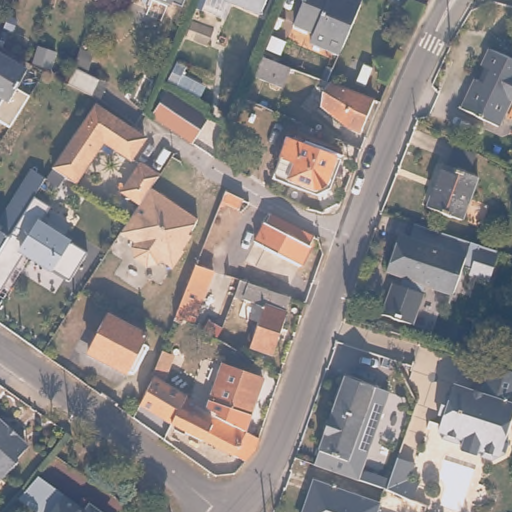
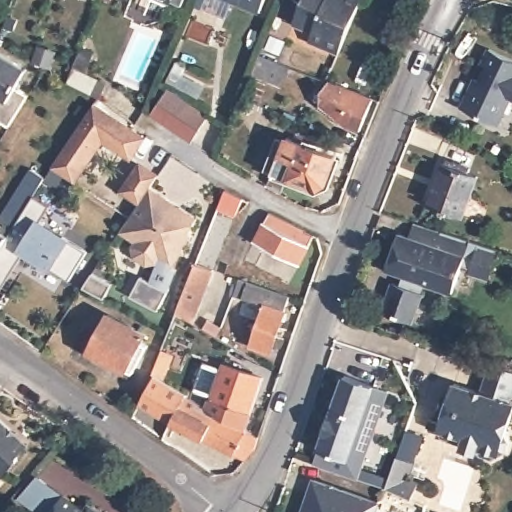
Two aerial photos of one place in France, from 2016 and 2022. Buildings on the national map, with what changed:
unchanged [(185,5),(172,0),(188,0),(185,5)]
unchanged [(260,7),(244,0),(263,0),(260,7)]
unchanged [(340,53),(310,40),(314,30),(294,21),(304,0),(364,0),(340,53)]
unchanged [(51,39),(49,46),(40,42),(42,35),(51,39)]
unchanged [(512,55),(512,93),(510,92),(496,120),(461,102),(475,74),(480,75),(486,62),(481,60),(489,44),(512,55)]
unchanged [(27,67),(20,79),(22,80),(10,99),(8,97),(4,105),(0,105),(0,52),(10,56),(27,67)]
unchanged [(290,67),(282,87),(249,74),(256,54),(290,67)]
unchanged [(369,100),(356,132),(343,126),(321,109),(331,85),(369,100)]
unchanged [(212,106),(200,134),(156,115),(167,87),(212,106)]
unchanged [(99,109),(110,116),(144,138),(131,157),(105,141),(77,185),(54,170),(93,106),(99,109)]
unchanged [(336,156),(327,184),(317,190),(275,175),(287,140),(336,156)]
unchanged [(451,155),(475,164),(467,182),(472,184),(458,225),(423,214),(437,171),(444,174),(451,155)]
unchanged [(141,204),(123,192),(140,165),(159,177),(151,189),(168,200),(181,208),(199,220),(190,234),(193,236),(184,250),(186,251),(175,268),(163,261),(160,265),(150,267),(137,260),(135,250),(119,239),(131,220),(141,204)]
unchanged [(42,180),(31,199),(9,235),(0,250),(0,218),(29,172),(42,180)]
unchanged [(239,200),(235,207),(216,200),(220,191),(239,200)]
unchanged [(37,224),(85,254),(67,282),(22,255),(0,292),(0,250),(9,235),(31,199),(47,208),(37,224)]
unchanged [(310,234),(296,266),(283,260),(280,266),(268,261),(271,255),(253,247),(268,214),(310,234)]
unchanged [(500,252),(490,278),(471,271),(472,267),(463,264),(453,291),(425,281),(422,290),(424,291),(413,321),(383,310),(395,280),(405,285),(407,275),(388,268),(400,235),(410,239),(416,224),(427,227),(443,232),(479,245),(500,252)]
unchanged [(201,268),(216,275),(198,323),(189,320),(186,325),(184,330),(179,326),(180,322),(201,268)]
unchanged [(288,298),(271,354),(250,347),(262,307),(242,300),(247,283),(288,298)]
unchanged [(144,332),(140,340),(145,343),(131,372),(125,369),(125,370),(85,351),(104,312),(144,332)]
unchanged [(215,331),(211,338),(195,330),(199,322),(215,331)]
unchanged [(185,396),(174,418),(171,421),(137,402),(153,375),(150,373),(155,358),(167,364),(160,380),(185,395),(185,396)]
unchanged [(512,366),(512,389),(510,397),(512,398),(512,410),(505,431),(508,436),(505,450),(490,456),(480,453),(477,447),(480,436),(465,431),(462,436),(456,440),(443,435),(439,425),(443,410),(448,406),(453,393),(450,392),(455,380),(481,389),(490,359),(512,366)]
unchanged [(259,378),(246,414),(207,399),(219,365),(259,378)]
unchanged [(391,393),(361,480),(341,473),(318,465),(347,377),(391,393)]
unchanged [(174,418),(185,396),(217,412),(216,415),(259,437),(255,448),(244,460),(171,421),(174,418)]
unchanged [(27,441),(24,445),(15,454),(15,460),(0,475),(0,417),(10,426),(27,441)]
unchanged [(417,465),(410,481),(422,483),(416,500),(390,491),(400,460),(417,465)]
unchanged [(303,512),(310,492),(312,493),(317,481),(371,498),(367,512),(303,512)]
unchanged [(66,496),(75,503),(84,512),(53,512),(60,504),(66,496)]
unchanged [(385,512),(367,512),(371,498),(379,501),(385,512)]
unchanged [(100,512),(85,512),(91,505),(100,512)]

